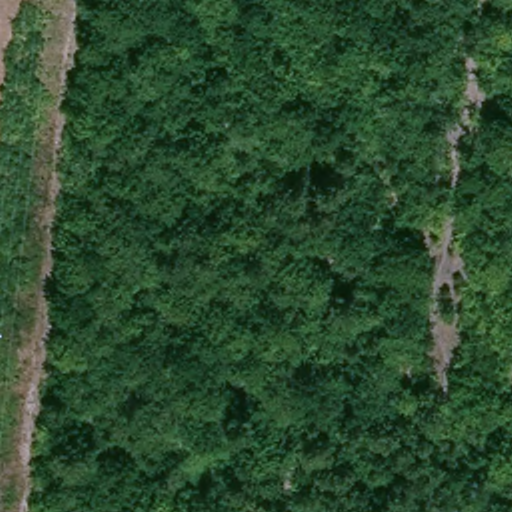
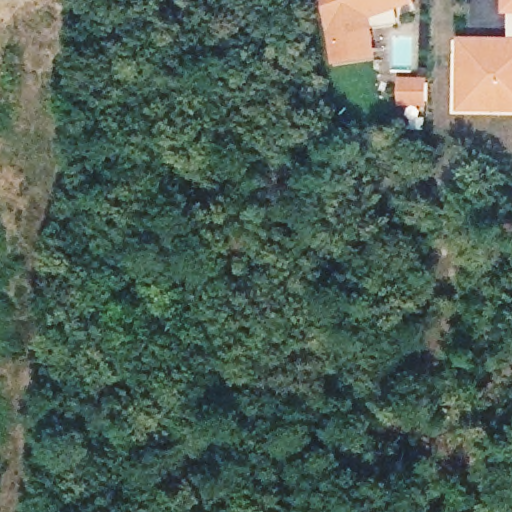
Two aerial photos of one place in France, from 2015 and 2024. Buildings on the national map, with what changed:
new [(418,4),(399,10),(401,24),(376,28),(380,58),(335,66),(328,0),(417,0),(418,4)]
new [(458,60),(460,36),(508,37),(508,14),(499,14),(499,0),(512,0),(512,113),(452,112),(452,60),(458,60)]
new [(399,76),(428,78),(426,108),(397,105),(399,76)]

